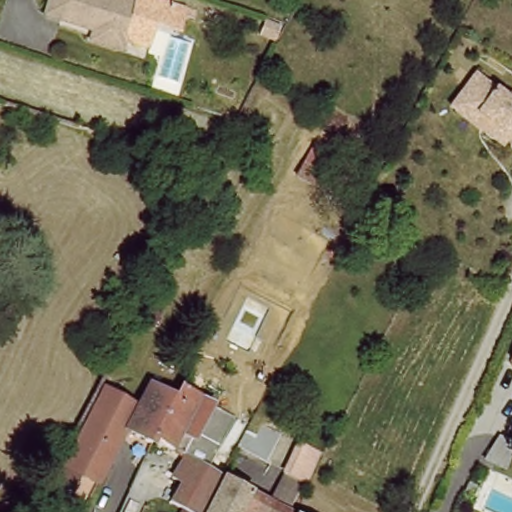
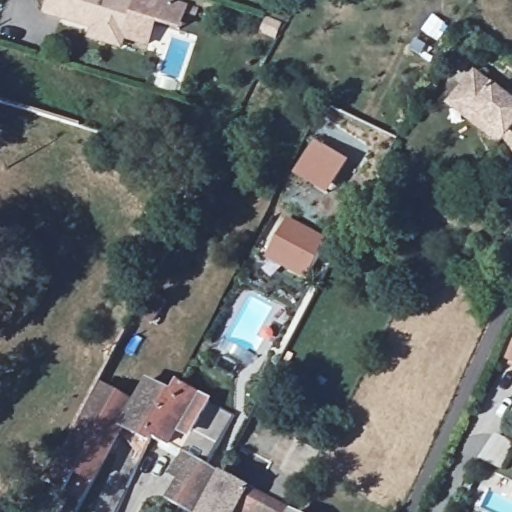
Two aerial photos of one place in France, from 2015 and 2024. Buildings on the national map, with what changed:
unchanged [(125,42),(49,19),(55,0),(139,0),(125,42)]
unchanged [(199,8),(196,17),(187,14),(183,31),(159,24),(148,52),(125,42),(139,0),(172,0),(199,8)]
unchanged [(512,143),(508,149),(497,141),(490,135),(456,110),(462,102),(481,76),(509,97),(512,99),(512,143)]
new [(313,138),(348,160),(325,195),(288,173),(313,138)]
new [(284,216),(329,238),(307,280),(265,262),(284,216)]
unchanged [(512,350),(512,354),(510,353),(512,350)]
unchanged [(155,430),(152,435),(151,436),(149,441),(121,424),(91,478),(60,463),(103,383),(135,402),(148,381),(171,393),(155,430)]
unchanged [(155,430),(171,393),(178,381),(205,397),(191,426),(180,421),(167,442),(152,435),(155,430)]
unchanged [(192,512),(191,512),(163,498),(175,477),(170,475),(182,452),(215,471),(192,512)]
unchanged [(201,512),(221,473),(246,488),(267,498),(260,512),(201,512)]

